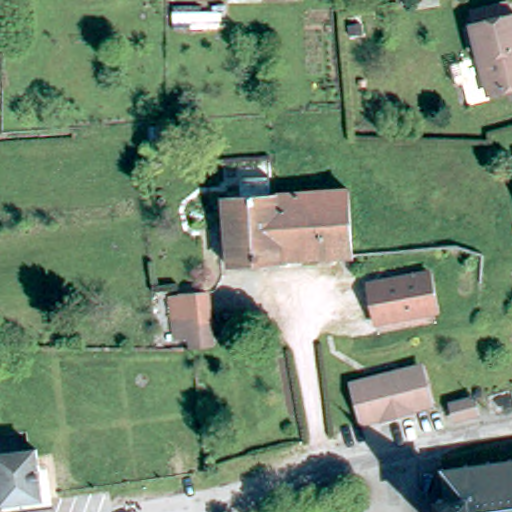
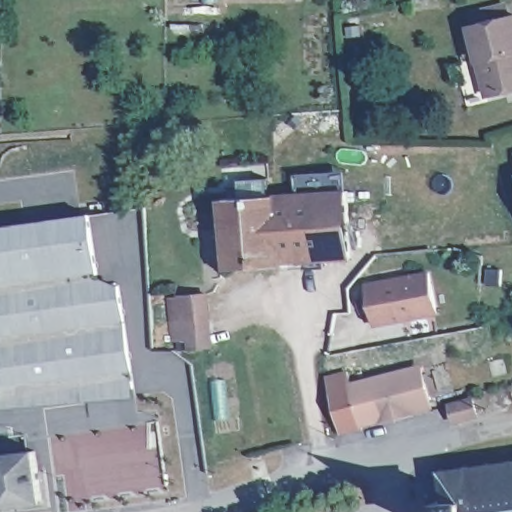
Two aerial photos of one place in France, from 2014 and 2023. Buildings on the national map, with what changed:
unchanged [(487,94),(470,23),(512,13),(512,87),(487,94)]
unchanged [(223,229),(222,197),(238,196),(239,179),(248,179),(267,179),(267,195),(270,195),(271,195),(275,255),(275,262),(225,265),(223,236),(219,237),(219,229),(223,229)]
unchanged [(346,191),(350,259),(344,260),(275,262),(275,255),(271,195),(346,191)]
new [(0,227),(95,214),(105,287),(124,285),(138,386),(116,390),(116,385),(77,391),(78,396),(18,405),(0,278),(0,227)]
unchanged [(432,267),(440,308),(380,320),(373,280),(432,267)]
unchanged [(190,351),(190,335),(178,335),(175,287),(208,283),(220,343),(190,351)]
unchanged [(388,414),(363,420),(358,403),(351,381),(357,380),(407,366),(408,370),(426,365),(436,401),(418,406),(420,412),(402,417),(390,421),(388,414)]
unchanged [(479,407),(463,412),(461,401),(476,397),(479,407)]
unchanged [(42,500),(0,506),(0,455),(35,450),(42,500)]
unchanged [(435,492),(444,492),(442,469),(440,467),(441,465),(443,466),(457,465),(458,462),(464,461),(466,463),(480,462),(481,462),(481,460),(487,459),(490,461),(492,460),(503,460),(503,456),(509,456),(510,459),(512,459),(512,512),(437,512),(435,492)]

